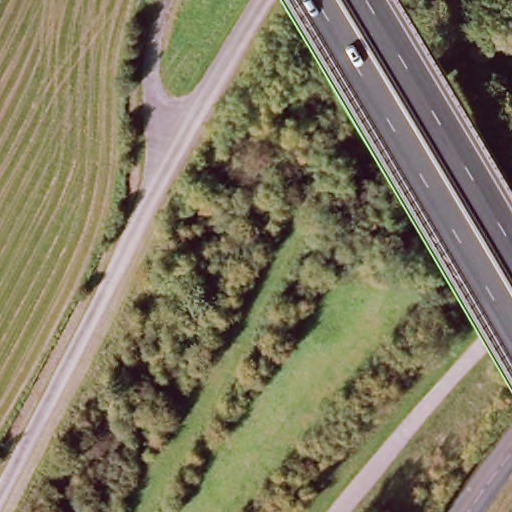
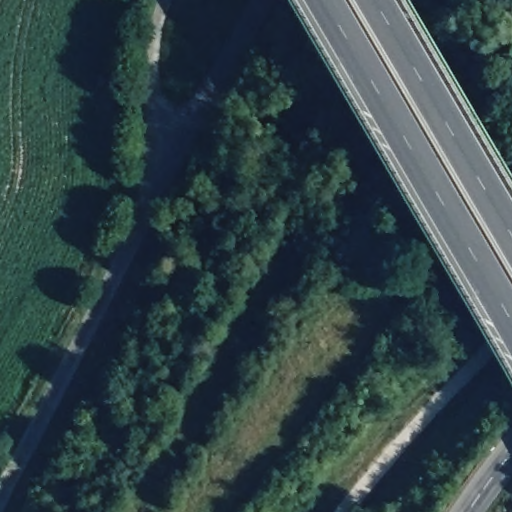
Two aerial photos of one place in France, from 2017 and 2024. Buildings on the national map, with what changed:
[]

